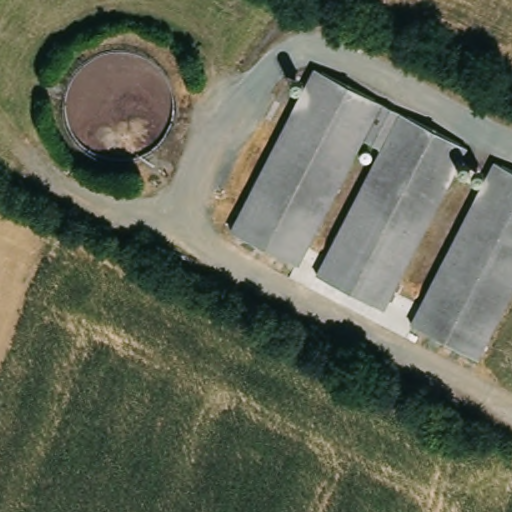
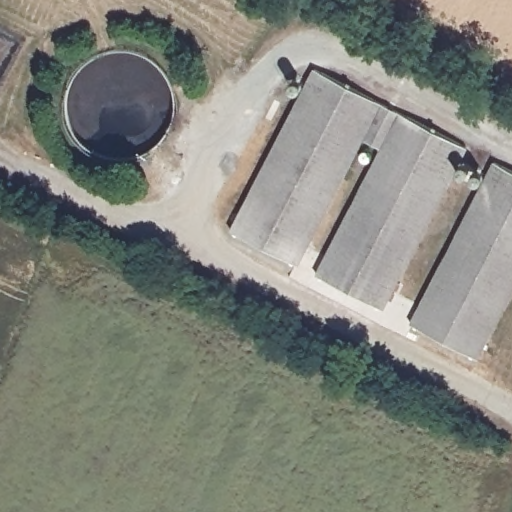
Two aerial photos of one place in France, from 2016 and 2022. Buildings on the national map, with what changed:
unchanged [(316,76),(320,70),(469,148),(465,155),(385,307),(321,273),(387,148),(366,137),(300,262),(236,229),(316,76)]
unchanged [(512,171),(512,292),(479,356),(416,323),(496,171),(499,164),(512,171)]

